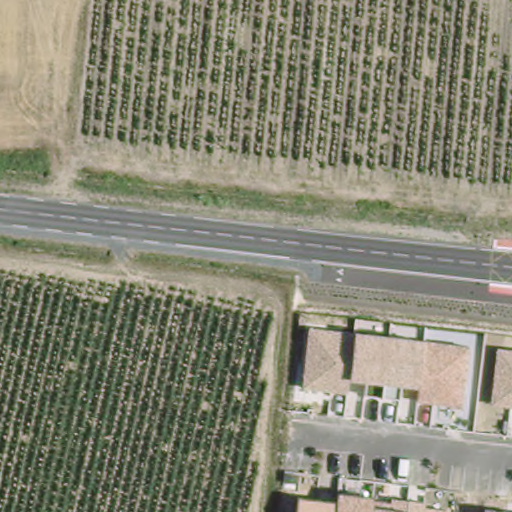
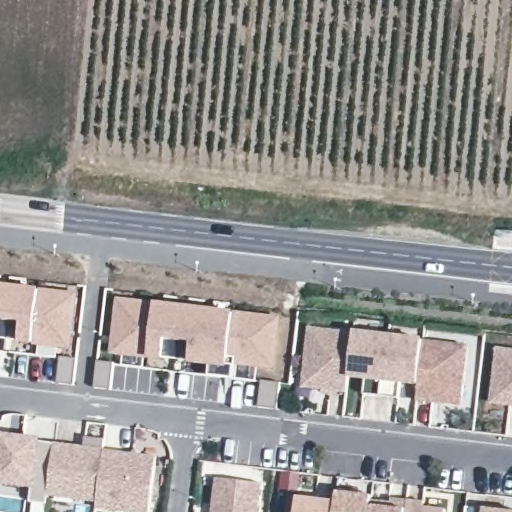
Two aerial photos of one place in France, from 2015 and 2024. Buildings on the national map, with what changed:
new [(32,344),(18,343),(20,324),(0,322),(0,284),(41,289),(78,294),(71,350),(32,344)]
new [(235,366),(236,357),(229,356),(226,368),(188,363),(191,343),(164,340),(162,361),(151,360),(110,354),(118,299),(156,303),(235,313),(281,318),(274,370),(235,366)]
unchanged [(471,346),(464,405),(417,401),(417,387),(401,385),(399,399),(364,395),(365,382),(349,380),(348,394),(301,389),(309,327),(471,346)]
unchanged [(512,349),(512,407),(490,404),(497,347),(512,349)]
new [(49,492),(46,505),(31,502),(33,488),(0,484),(0,434),(42,439),(54,440),(49,492)]
new [(104,441),(98,497),(49,492),(54,440),(70,441),(69,446),(83,448),(83,456),(84,438),(104,441)]
new [(156,457),(150,512),(126,512),(98,509),(103,452),(156,457)]
new [(297,474),(296,483),(284,482),(285,473),(297,474)]
new [(260,512),(212,512),(216,479),(263,485),(260,512)]
unchanged [(338,492),(374,496),(374,499),(392,501),(392,497),(427,501),(427,507),(447,509),(447,512),(296,512),(298,497),(336,501),(338,492)]
unchanged [(485,512),(485,509),(512,512),(485,512)]

